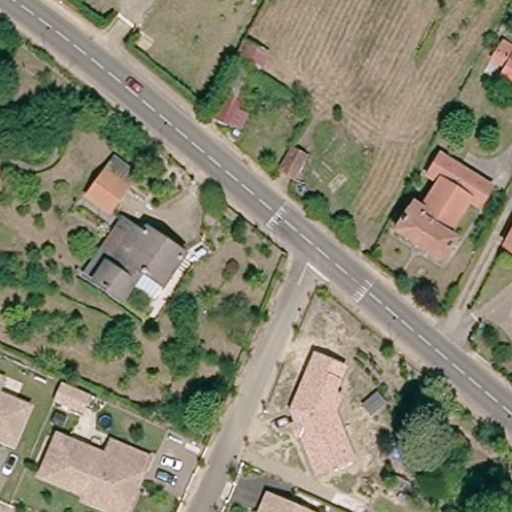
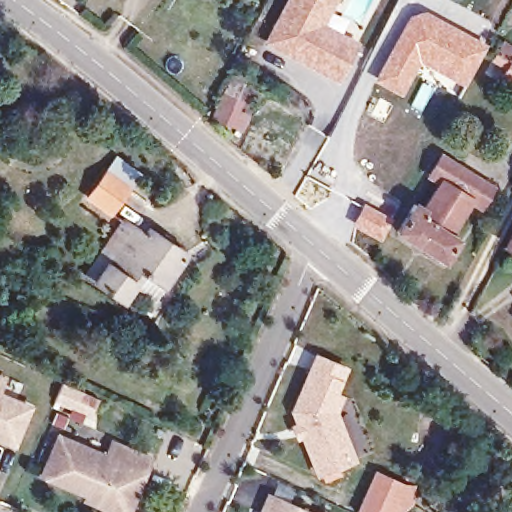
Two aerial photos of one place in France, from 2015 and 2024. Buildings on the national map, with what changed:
new [(325,24),(358,44),(338,83),(262,44),(285,0),(337,0),(325,24)]
new [(405,17),(408,14),(415,11),(422,10),(426,10),(486,45),(463,86),(422,63),(402,96),(373,79),(405,17)]
unchanged [(502,44),(512,50),(512,63),(497,53),(502,44)]
unchanged [(253,64),(233,108),(220,102),(239,58),(253,64)]
unchanged [(512,63),(512,73),(507,70),(512,63)]
unchanged [(495,190),(483,209),(468,199),(438,180),(426,173),(439,154),(495,190)]
unchanged [(129,178),(113,203),(90,187),(107,163),(129,178)]
unchanged [(448,232),(456,237),(441,259),(395,229),(409,208),(417,213),(438,180),(468,199),(448,232)]
unchanged [(133,282),(120,300),(94,282),(83,274),(113,230),(124,238),(128,232),(139,239),(146,229),(185,255),(164,286),(155,298),(133,282)]
unchanged [(512,235),(512,272),(498,261),(512,235)]
unchanged [(341,381),(336,393),(342,396),(335,414),(355,459),(316,477),(300,438),(295,440),(289,425),(293,422),(289,410),(313,354),(347,367),(341,381)]
unchanged [(5,378),(0,389),(0,375),(5,378)]
unchanged [(74,419),(47,407),(54,389),(78,399),(84,402),(76,420),(74,419)]
unchanged [(31,405),(15,443),(0,436),(0,392),(31,405)]
unchanged [(87,497),(89,493),(43,473),(60,434),(107,454),(114,440),(152,456),(145,472),(129,512),(122,512),(118,511),(87,497)]
new [(418,487),(412,504),(404,512),(355,512),(374,469),(418,487)]
unchanged [(270,493),(313,512),(264,512),(262,511),(270,493)]

